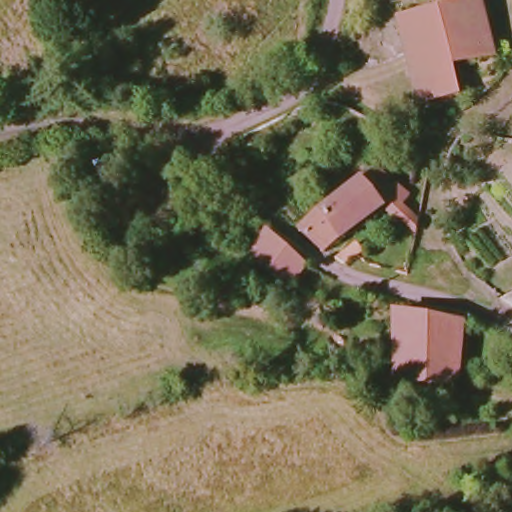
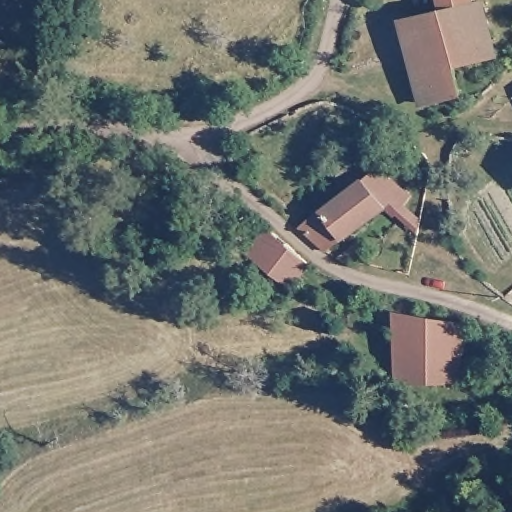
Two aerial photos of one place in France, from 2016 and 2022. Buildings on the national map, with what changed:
unchanged [(470,5),(478,5),(489,53),(450,64),(451,93),(414,100),(392,15),(435,7),(433,0),(468,0),(470,5)]
unchanged [(316,248),(292,227),(311,207),(365,164),(403,192),(383,206),(356,223),(316,248)]
unchanged [(302,262),(289,283),(248,253),(262,222),(283,239),(302,262)]
unchanged [(337,263),(327,257),(348,245),(355,254),(337,263)]
unchanged [(512,287),(512,305),(500,298),(512,287)]
unchanged [(395,384),(396,311),(460,319),(455,383),(395,384)]

